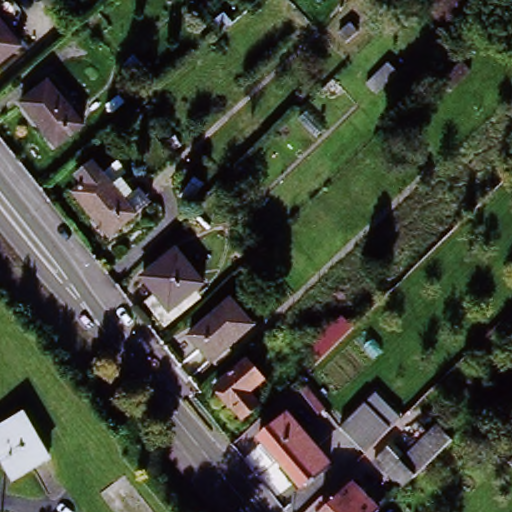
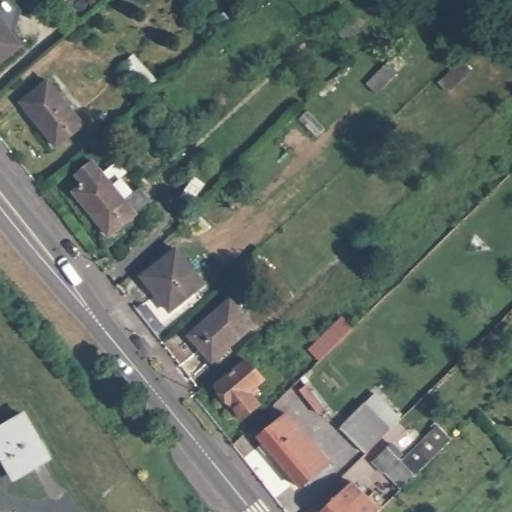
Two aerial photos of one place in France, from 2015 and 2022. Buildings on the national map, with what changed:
unchanged [(0,66),(0,19),(22,49),(0,66)]
unchanged [(57,143),(22,99),(50,79),(82,123),(57,143)]
unchanged [(124,198),(140,187),(151,201),(108,231),(76,189),(102,171),(124,198)]
unchanged [(174,246),(201,281),(170,308),(141,274),(174,246)]
unchanged [(230,301),(252,327),(211,362),(189,336),(230,301)]
unchanged [(355,327),(334,347),(324,335),(345,316),(355,327)]
unchanged [(214,387),(241,363),(257,382),(251,388),(255,392),(249,398),(255,405),(240,418),(214,387)]
unchanged [(301,390),(307,385),(324,406),(317,411),(301,390)]
unchanged [(402,416),(366,455),(341,429),(376,391),(402,416)]
unchanged [(50,457),(16,479),(0,452),(0,430),(25,415),(50,457)]
unchanged [(289,415),(332,462),(303,487),(260,440),(289,415)]
unchanged [(439,426),(451,439),(399,489),(371,460),(390,443),(403,458),(439,426)]
unchanged [(324,512),(323,511),(355,482),(382,511),(380,512),(324,512)]

